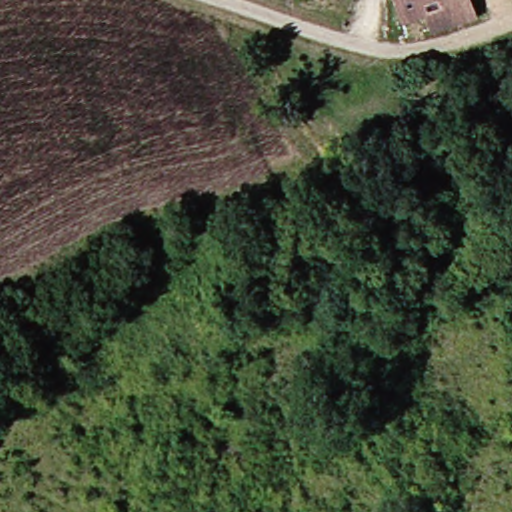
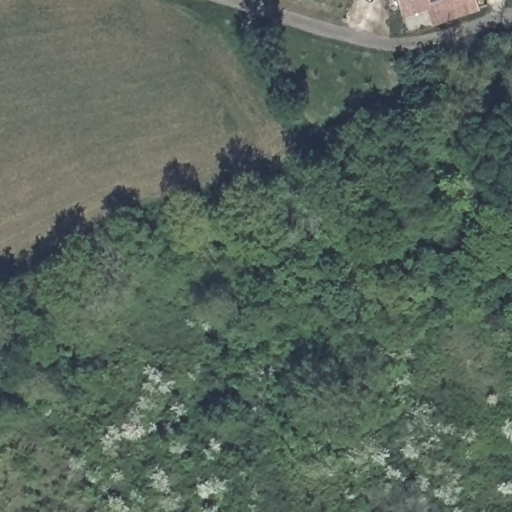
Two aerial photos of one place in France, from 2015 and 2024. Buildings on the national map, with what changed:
unchanged [(459,22),(430,29),(424,9),(401,15),(396,0),(453,0),(459,22)]
unchanged [(483,16),(459,22),(453,0),(477,0),(483,16)]

